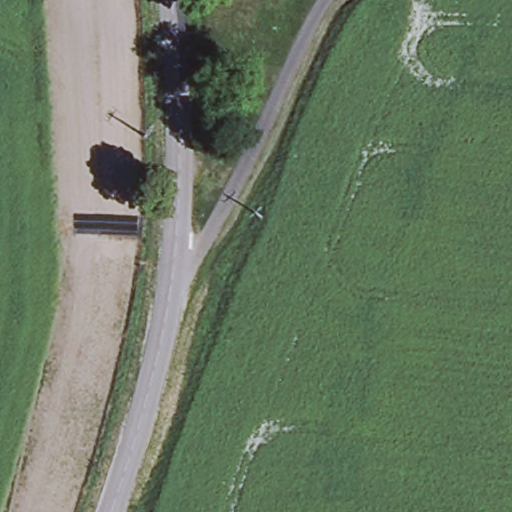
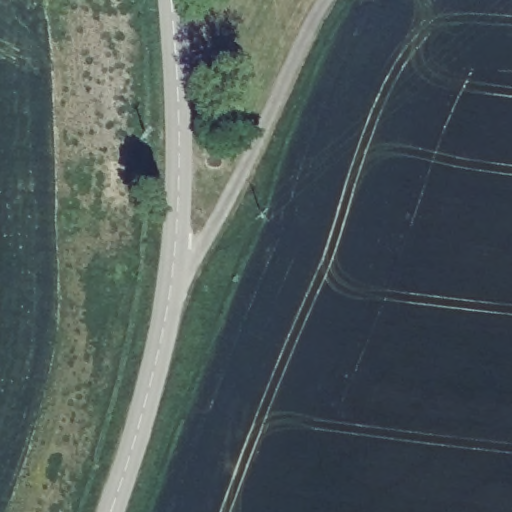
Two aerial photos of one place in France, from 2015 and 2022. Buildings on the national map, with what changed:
[]

